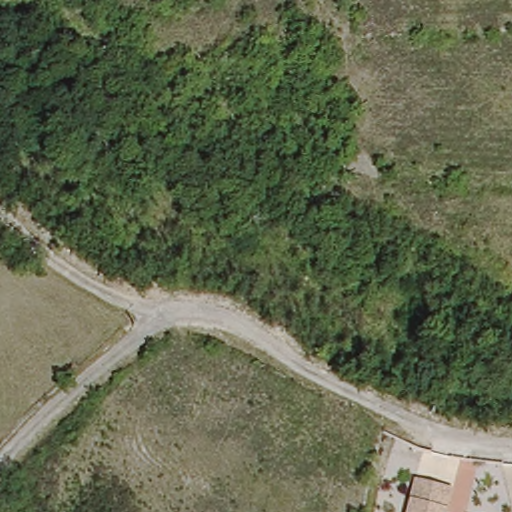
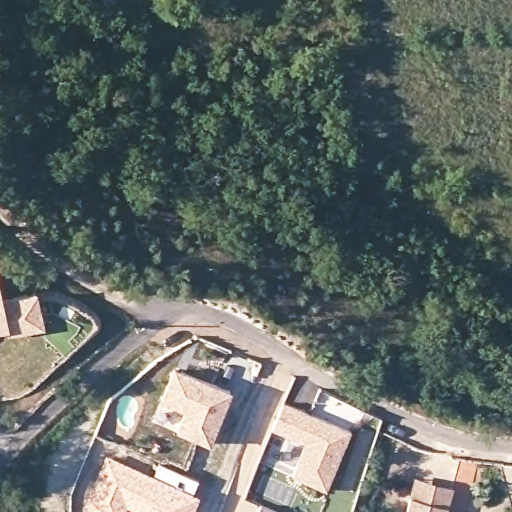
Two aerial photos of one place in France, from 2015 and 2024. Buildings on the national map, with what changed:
new [(2,302),(37,292),(45,328),(10,336),(9,331),(0,332),(0,294),(2,302)]
new [(175,429),(183,409),(159,400),(172,367),(229,389),(207,442),(175,429)]
new [(282,402),(349,429),(325,489),(291,476),(305,443),(271,429),(282,402)]
new [(199,479),(194,493),(200,496),(193,512),(136,512),(128,508),(126,512),(89,512),(83,510),(106,456),(153,476),(158,463),(199,479)]
unchanged [(428,481),(451,486),(445,508),(443,512),(418,512),(421,501),(428,481)]
new [(276,512),(256,512),(259,505),(276,512)]

